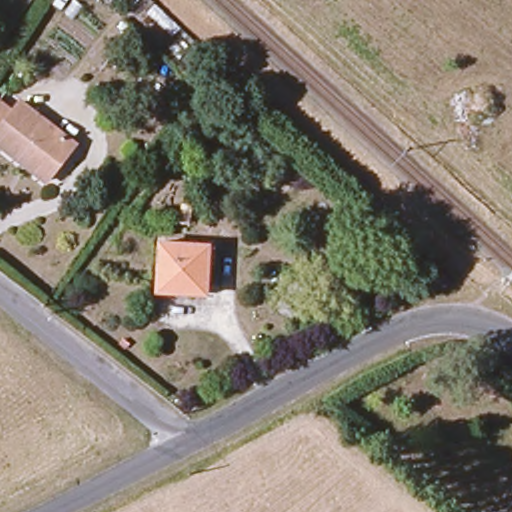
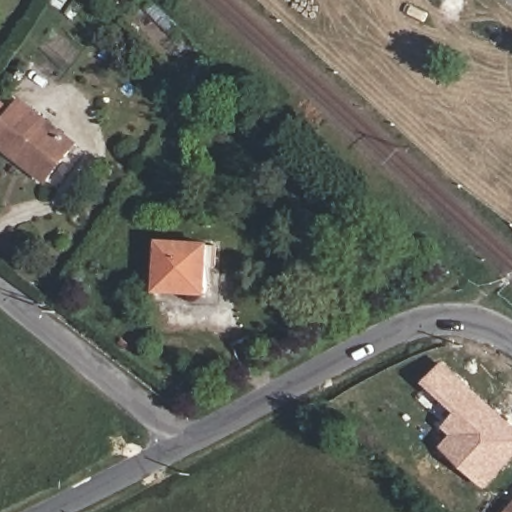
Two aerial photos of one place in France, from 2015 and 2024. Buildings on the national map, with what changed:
unchanged [(13,106),(69,154),(39,190),(0,156),(0,113),(3,115),(13,106)]
unchanged [(160,245),(207,247),(205,297),(159,296),(160,245)]
new [(488,489),(442,447),(453,435),(444,427),(458,412),(426,383),(446,361),(512,421),(512,463),(488,489)]

